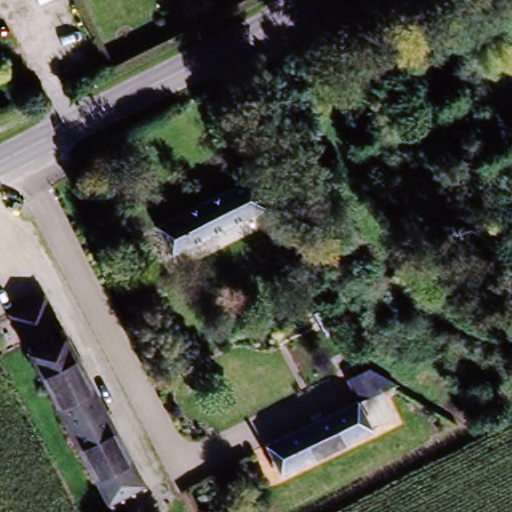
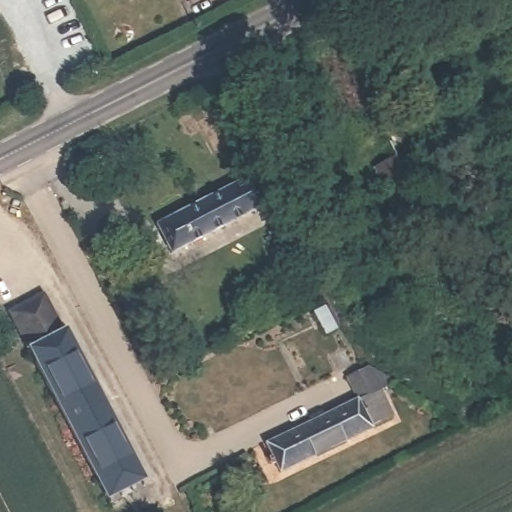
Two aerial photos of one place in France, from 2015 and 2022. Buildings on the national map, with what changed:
unchanged [(398,150),(422,194),(403,204),(380,160),(398,150)]
unchanged [(261,194),(253,198),(259,208),(167,258),(148,224),(250,169),(261,194)]
unchanged [(144,478),(109,498),(32,356),(5,302),(40,283),(144,478)]
unchanged [(396,420),(284,483),(269,455),(360,403),(348,380),(366,371),(395,385),(382,395),(396,420)]

